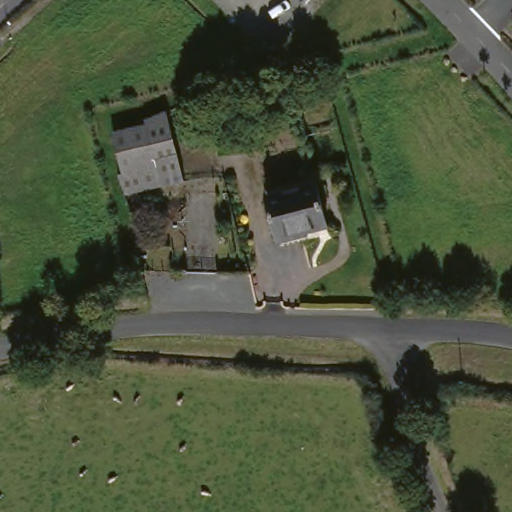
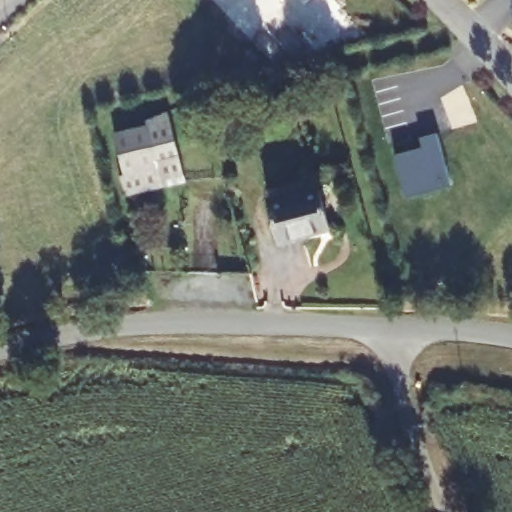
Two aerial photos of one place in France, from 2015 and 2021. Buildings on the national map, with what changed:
unchanged [(303,2),(301,0),(306,0),(303,2)]
unchanged [(163,113),(178,184),(121,199),(116,177),(122,176),(112,137),(140,131),(137,119),(163,113)]
new [(421,152),(419,143),(436,138),(450,189),(405,201),(394,160),(421,152)]
unchanged [(318,190),(326,231),(275,241),(267,200),(318,190)]

